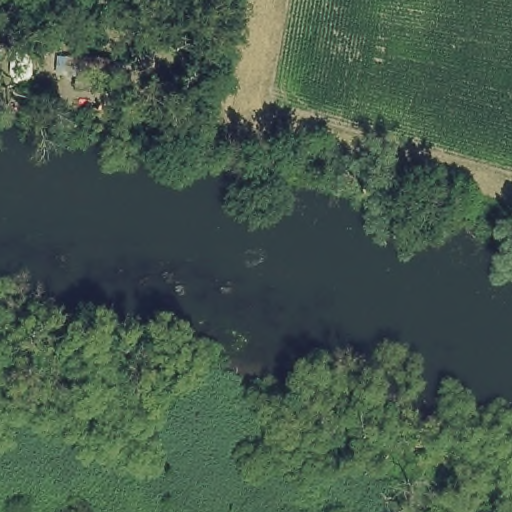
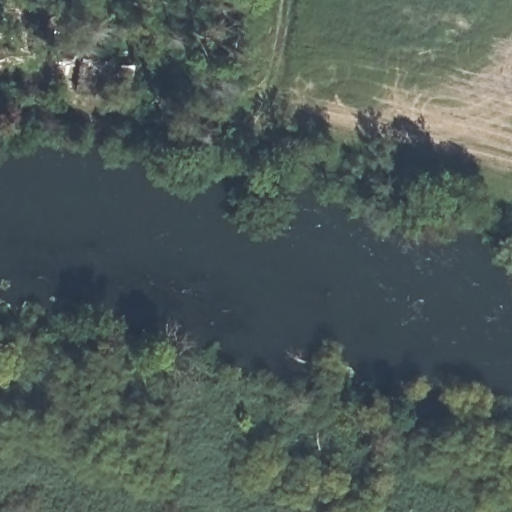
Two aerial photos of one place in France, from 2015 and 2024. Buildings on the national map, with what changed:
unchanged [(115,101),(68,98),(75,57),(120,62),(115,101)]

